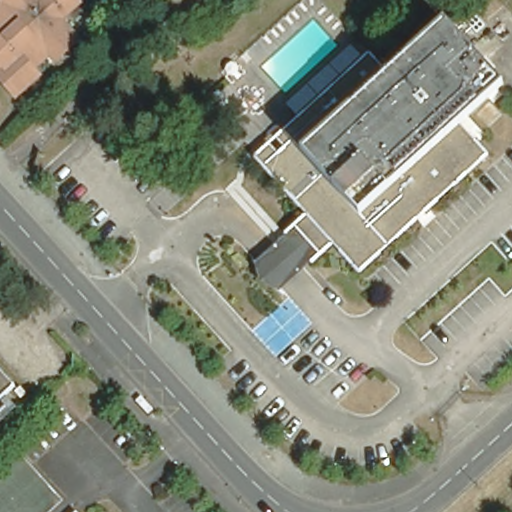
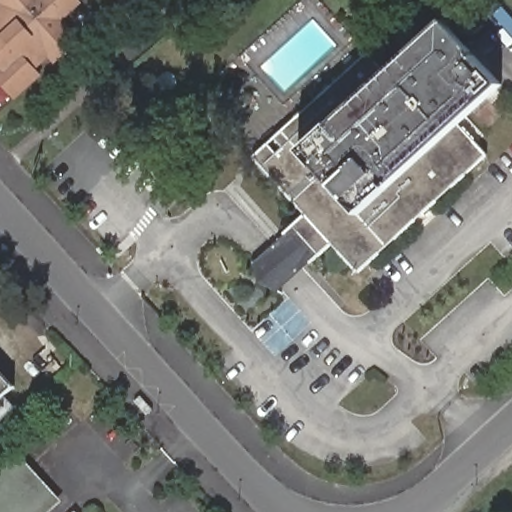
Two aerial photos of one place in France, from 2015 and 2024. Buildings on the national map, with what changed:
unchanged [(79,36),(54,57),(49,52),(34,65),(40,71),(15,94),(0,77),(0,1),(1,0),(78,0),(61,16),(79,36)]
unchanged [(305,220),(253,162),(282,137),(368,59),(387,79),(445,27),(470,55),(497,30),(508,42),(481,67),(502,90),(459,130),(487,161),(358,278),(331,249),(305,220)]
unchanged [(244,75),(232,62),(250,44),(263,56),(244,75)]
unchanged [(303,273),(280,293),(278,296),(258,287),(252,267),(254,265),(277,245),(305,220),(331,249),(303,273)]
unchanged [(0,401),(0,370),(15,387),(0,401)]
unchanged [(0,466),(16,452),(59,501),(46,512),(0,512),(0,466)]

